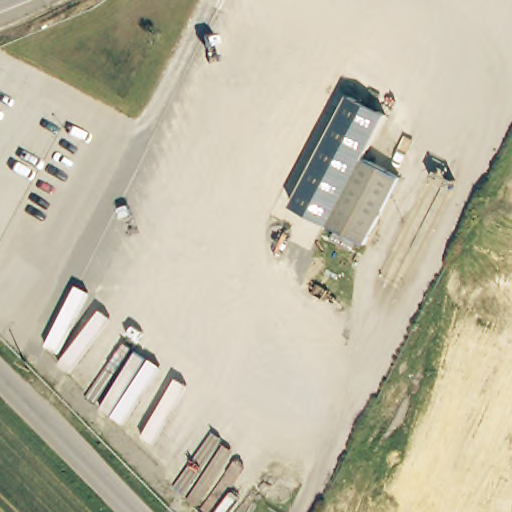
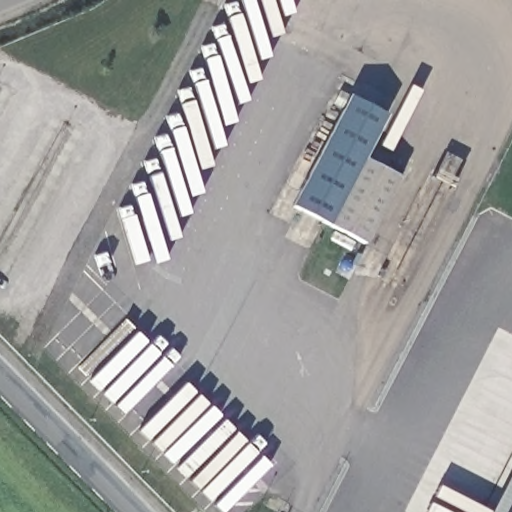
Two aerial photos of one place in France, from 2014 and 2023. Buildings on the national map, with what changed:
unchanged [(292,206),(350,97),(387,117),(366,155),(329,221),(292,206)]
unchanged [(366,155),(401,175),(366,240),(329,221),(366,155)]
new [(512,474),(512,512),(492,512),(512,474)]

